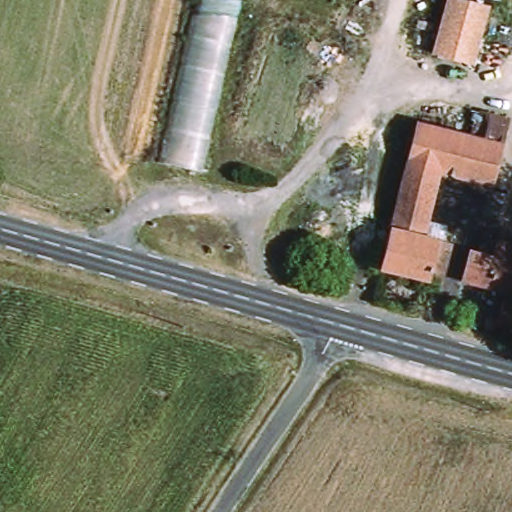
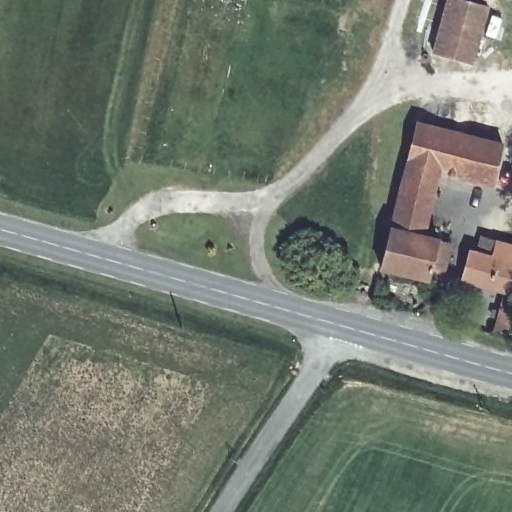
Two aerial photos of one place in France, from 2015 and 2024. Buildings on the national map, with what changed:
demolished [(203,172),(161,165),(198,0),(213,0),(239,5),(203,172)]
unchanged [(470,79),(432,69),(447,11),(448,11),(486,21),(470,79)]
unchanged [(502,144),(490,187),(441,177),(405,170),(411,141),(415,125),(460,134),(502,142),(502,144)]
unchanged [(426,244),(391,236),(405,170),(441,177),(426,244)]
unchanged [(446,288),(433,286),(382,274),(391,236),(426,244),(442,247),(455,251),(446,288)]
unchanged [(500,298),(462,288),(469,265),(492,268),(496,257),(512,262),(512,336),(492,333),(500,298)]

